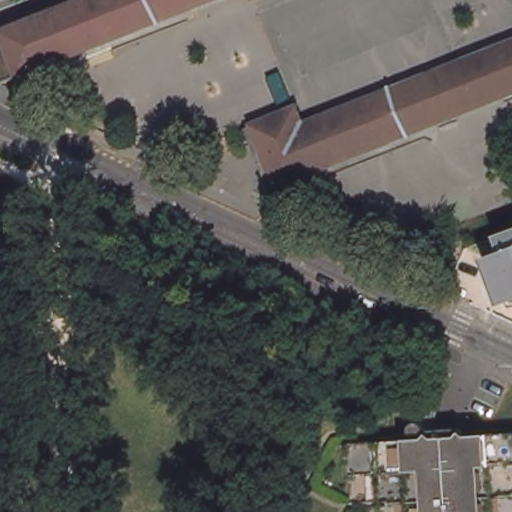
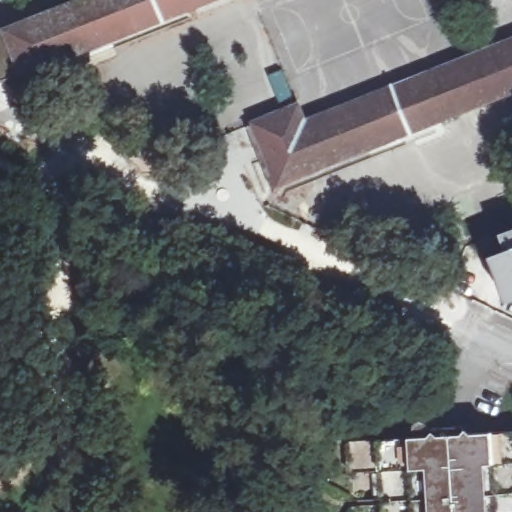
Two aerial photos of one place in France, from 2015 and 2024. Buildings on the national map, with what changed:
unchanged [(165,17),(107,40),(99,43),(83,50),(75,52),(46,65),(45,65),(41,66),(37,67),(26,72),(25,72),(2,82),(0,78),(0,33),(8,30),(84,0),(208,0),(167,16),(165,17)]
unchanged [(510,91),(451,115),(445,117),(402,135),(395,137),(385,140),(379,144),(377,144),(371,146),(320,166),(314,169),(312,170),(306,172),(280,182),(276,190),(275,190),(271,182),(248,127),(248,126),(256,124),(256,123),(298,106),(305,123),(459,62),(512,41),(512,90),(510,91)]
unchanged [(503,247),(512,244),(512,270),(503,247)]
unchanged [(468,245),(486,254),(484,258),(481,265),(477,273),(475,280),(471,287),(468,294),(466,298),(448,290),(468,245)]
unchanged [(443,427),(470,425),(471,434),(512,431),(512,512),(389,512),(386,471),(355,473),(353,441),(427,436),(427,435),(426,435),(422,434),(420,430),(420,426),(422,422),(426,420),(426,418),(416,418),(414,417),(414,406),(441,404),(443,405),(444,415),(442,417),(443,427)]

